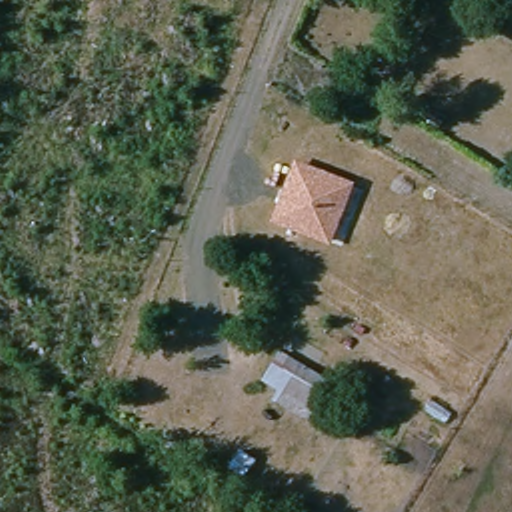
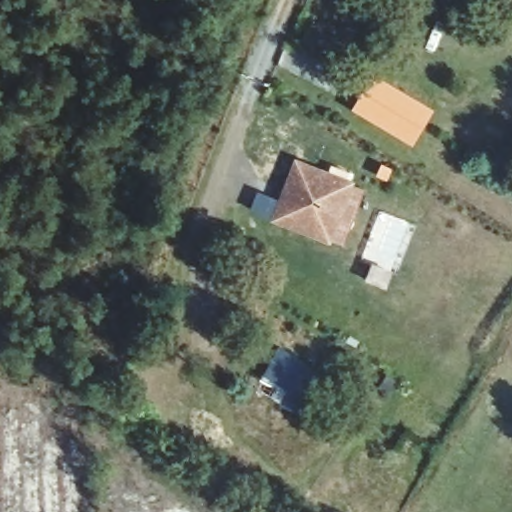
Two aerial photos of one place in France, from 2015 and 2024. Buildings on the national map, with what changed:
new [(285,46),(344,70),(333,95),(277,65),(285,46)]
new [(371,74),(434,110),(411,147),(350,109),(371,74)]
unchanged [(269,221),(292,160),(355,182),(330,245),(269,221)]
unchanged [(311,419),(277,398),(284,386),(265,375),(280,350),(334,382),(311,419)]

